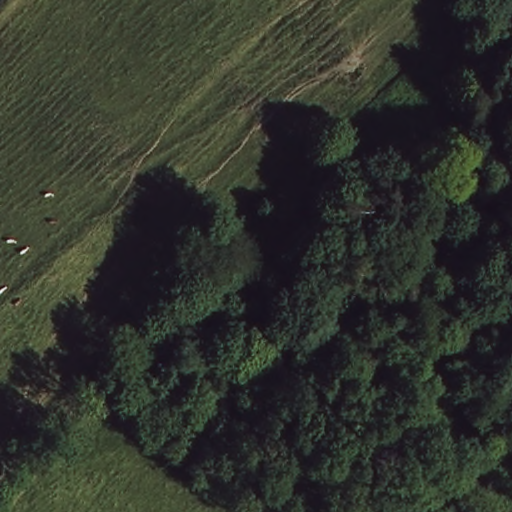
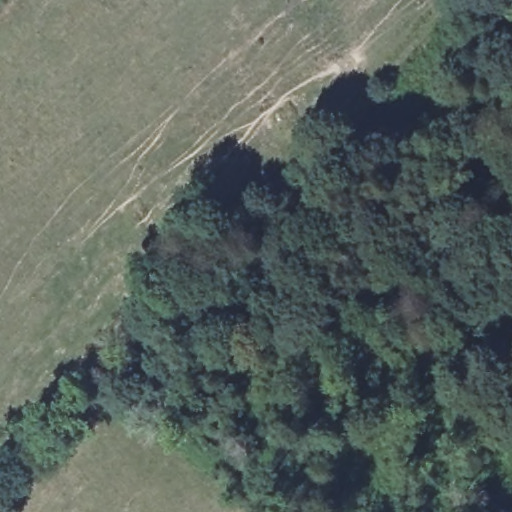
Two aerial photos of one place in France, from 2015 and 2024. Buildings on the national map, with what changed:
[]

